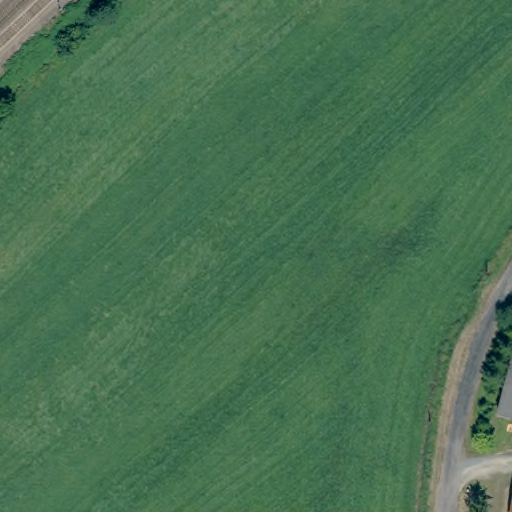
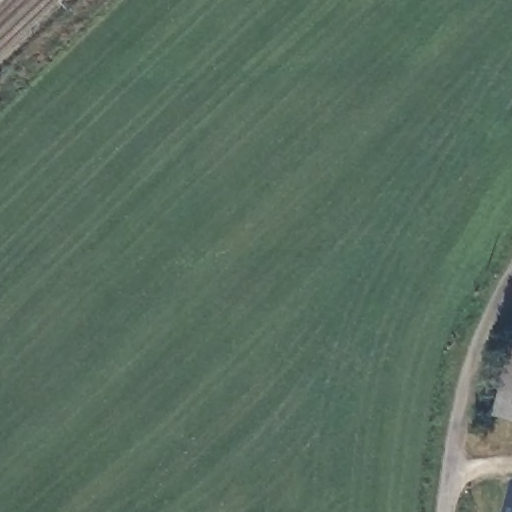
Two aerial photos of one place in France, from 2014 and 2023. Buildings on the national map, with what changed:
unchanged [(504,413),(512,385),(512,415),(504,413)]
unchanged [(504,512),(511,476),(512,476),(512,512),(504,512)]

